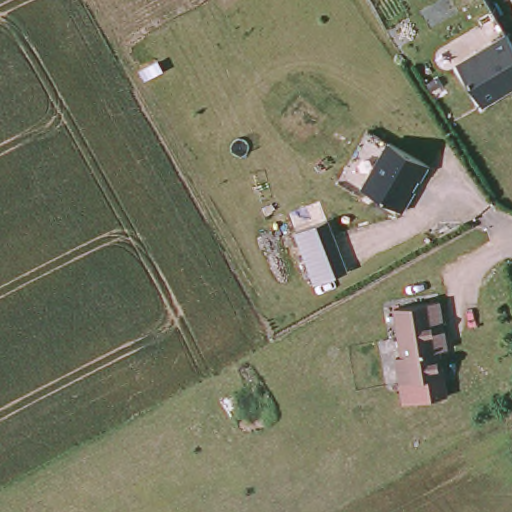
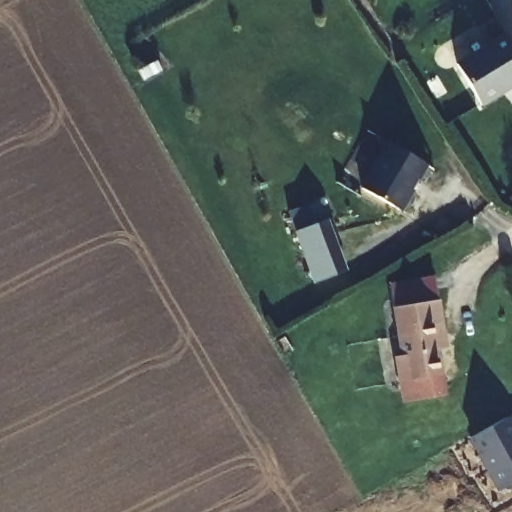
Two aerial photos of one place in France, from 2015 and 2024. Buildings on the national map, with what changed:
unchanged [(512,41),(512,84),(482,102),(457,61),(507,31),(512,41)]
unchanged [(431,162),(404,215),(358,190),(386,138),(431,162)]
unchanged [(332,219),(351,272),(312,287),(294,233),(332,219)]
unchanged [(402,358),(395,313),(442,307),(447,346),(439,347),(444,381),(400,387),(396,360),(402,358)]
new [(512,483),(498,491),(468,439),(510,416),(512,419),(512,483)]

